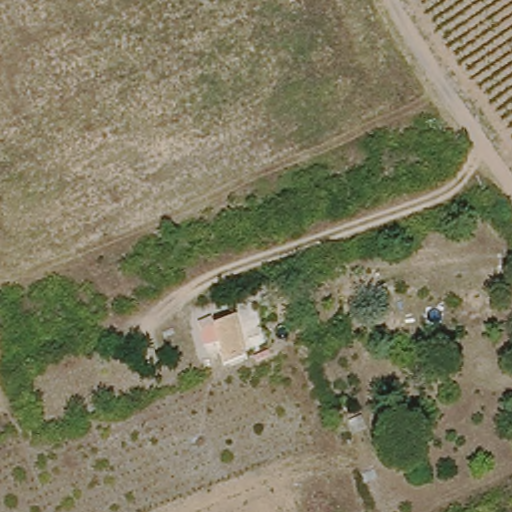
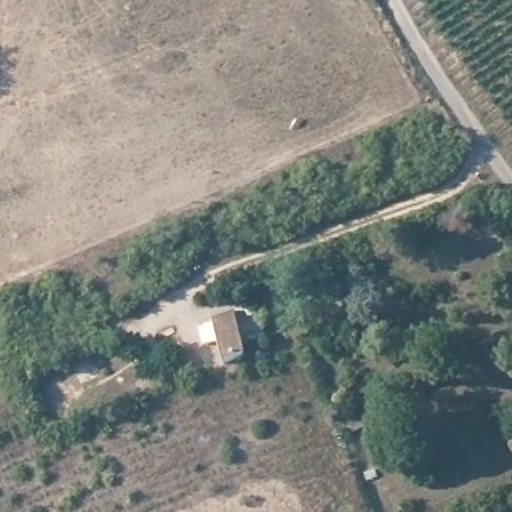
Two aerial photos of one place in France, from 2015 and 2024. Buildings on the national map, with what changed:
unchanged [(221,371),(207,331),(229,324),(244,363),(221,371)]

